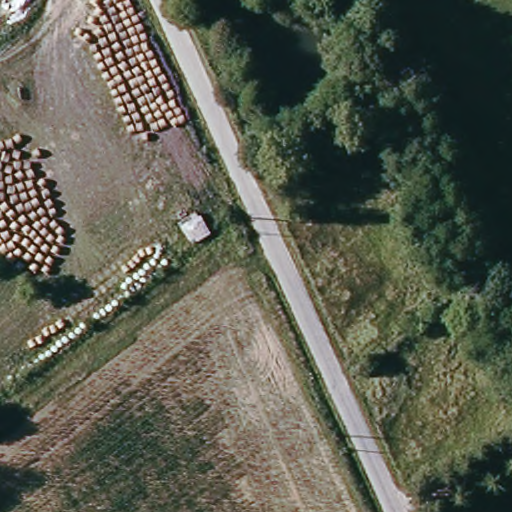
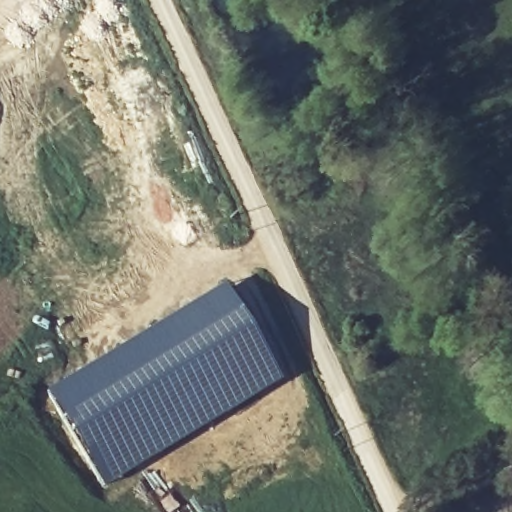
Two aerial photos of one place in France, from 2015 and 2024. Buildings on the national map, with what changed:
new [(214,291),(273,383),(104,489),(46,395),(214,291)]

